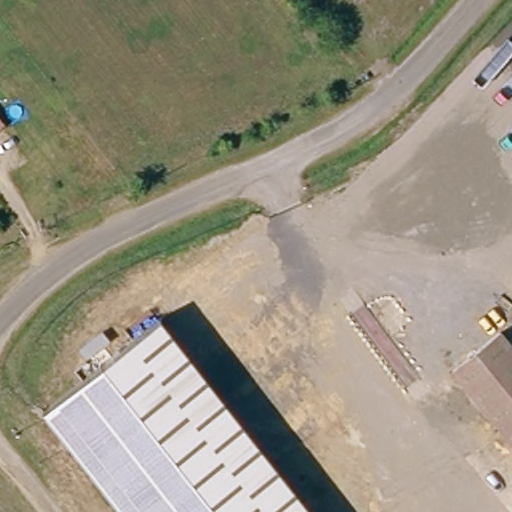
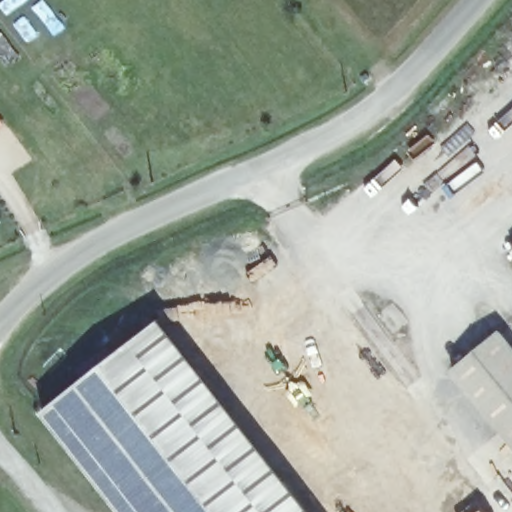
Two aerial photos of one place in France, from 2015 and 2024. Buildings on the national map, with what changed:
unchanged [(0,125),(0,122),(1,124),(0,125)]
unchanged [(87,377),(79,367),(111,344),(118,354),(168,317),(311,512),(124,512),(46,407),(87,377)]
unchanged [(512,338),(512,445),(453,365),(503,326),(512,338)]

